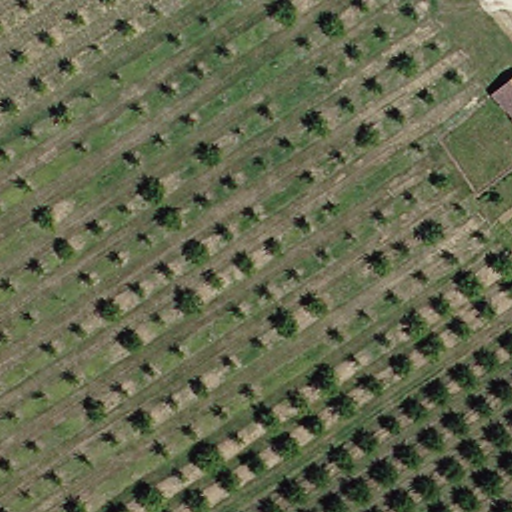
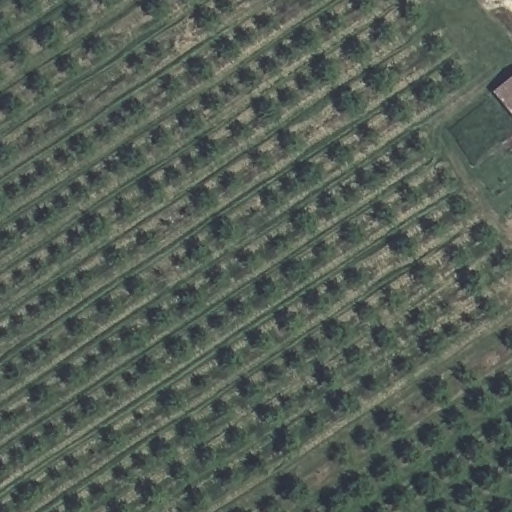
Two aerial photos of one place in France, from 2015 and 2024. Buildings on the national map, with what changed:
unchanged [(512,79),(512,113),(495,97),(512,79)]

